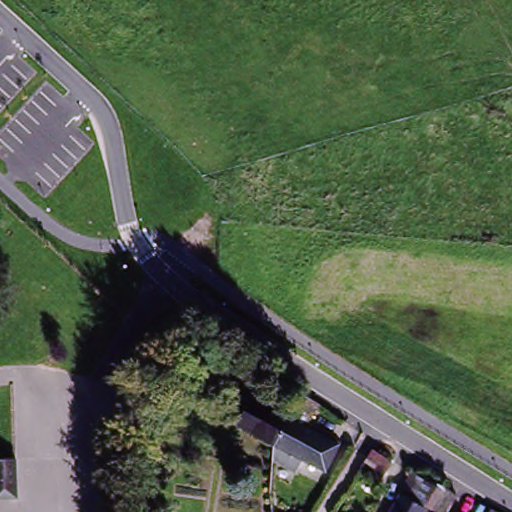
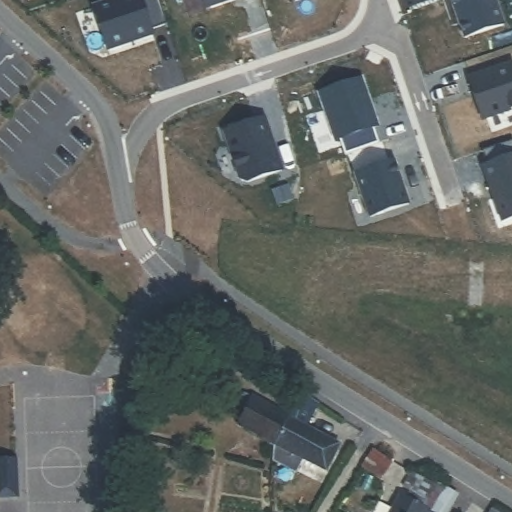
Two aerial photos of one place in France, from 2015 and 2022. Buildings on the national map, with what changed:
new [(157,0),(166,26),(150,32),(152,37),(107,52),(93,9),(120,0),(157,0)]
new [(202,0),(239,0),(206,11),(202,0)]
new [(241,0),(252,0),(243,3),(241,0)]
new [(293,0),(303,0),(294,3),(293,0)]
new [(464,41),(450,0),(493,0),(502,28),(464,41)]
new [(473,98),(467,81),(512,67),(512,68),(512,112),(481,122),(473,98)]
new [(344,157),(339,143),(339,141),(335,142),(319,96),(361,81),(377,129),(372,130),(373,131),(378,146),(344,157)]
new [(245,185),(239,181),(237,177),(223,135),(263,121),(278,164),(281,173),(245,185)]
new [(512,222),(501,226),(482,169),(486,167),(481,154),(512,143),(512,222)]
new [(393,164),(407,207),(369,220),(354,176),(393,164)]
new [(286,189),(290,202),(277,207),(272,193),(286,189)]
unchanged [(290,414),(299,398),(315,408),(305,423),(290,414)]
unchanged [(313,468),(271,443),(240,426),(254,402),(286,420),(328,444),(313,468)]
unchanged [(5,501),(5,505),(0,504),(0,464),(20,465),(18,501),(5,501)]
unchanged [(440,511),(442,506),(450,492),(452,489),(464,497),(455,512),(442,512),(440,511)]
unchanged [(488,505),(499,512),(483,512),(488,505)]
unchanged [(408,511),(411,512),(407,512),(408,511)]

